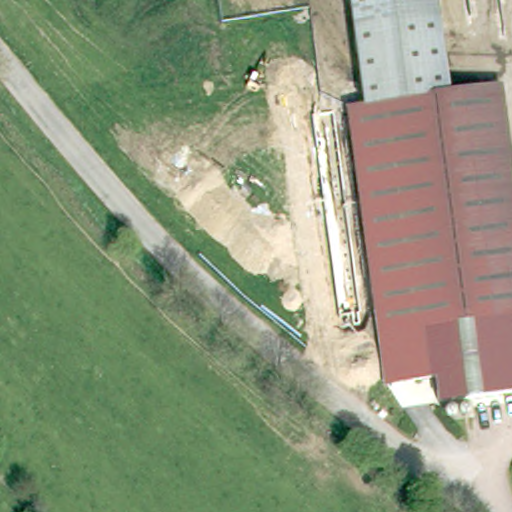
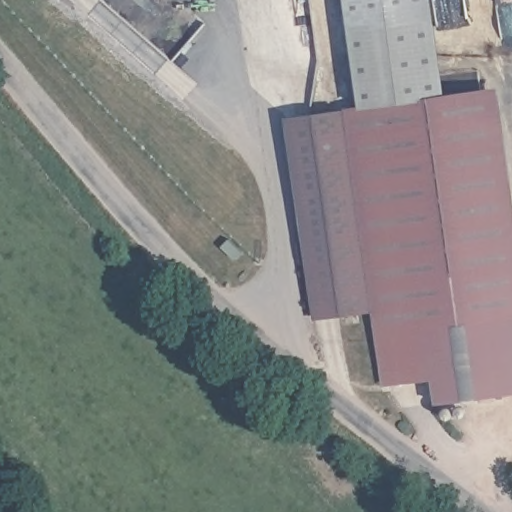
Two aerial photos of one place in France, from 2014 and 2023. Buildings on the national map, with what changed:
unchanged [(432,21),(347,33),(342,0),(429,0),(432,21)]
unchanged [(432,21),(442,90),(402,96),(357,102),(347,33),(432,21)]
unchanged [(342,105),(357,102),(402,96),(442,90),(481,85),(492,84),(512,228),(512,310),(511,310),(464,316),(425,321),(422,321),(429,372),(380,380),(342,105)]
new [(370,305),(314,312),(286,113),(342,105),(370,305)]
unchanged [(429,372),(422,321),(425,321),(464,316),(511,310),(512,310),(512,386),(471,392),(432,397),(430,380),(429,372)]

